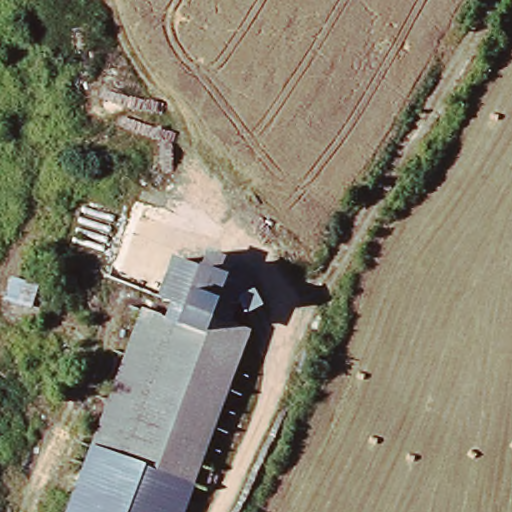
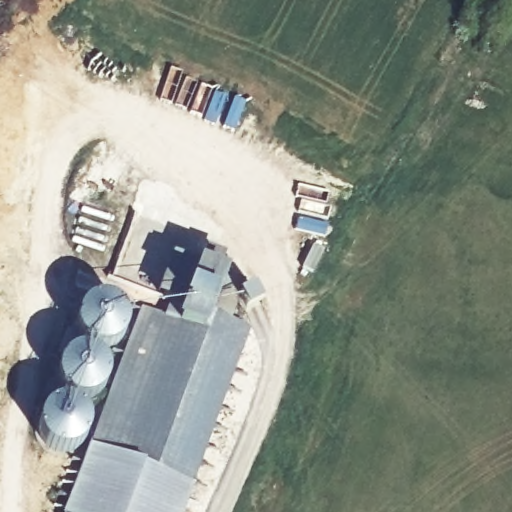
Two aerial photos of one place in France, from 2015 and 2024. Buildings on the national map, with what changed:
unchanged [(172,262),(202,272),(225,278),(212,319),(231,321),(242,300),(256,292),(265,305),(187,512),(70,512),(142,319),(172,262)]
new [(45,447),(41,443),(39,437),(39,425),(43,413),(80,311),(90,302),(95,300),(105,300),(112,302),(117,305),(142,319),(94,449),(87,469),(57,453),(45,447)]

